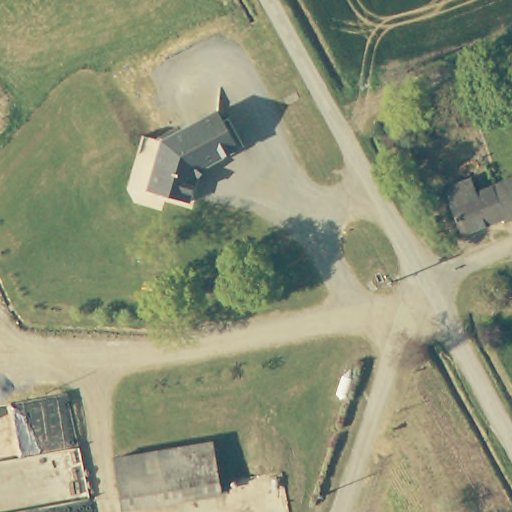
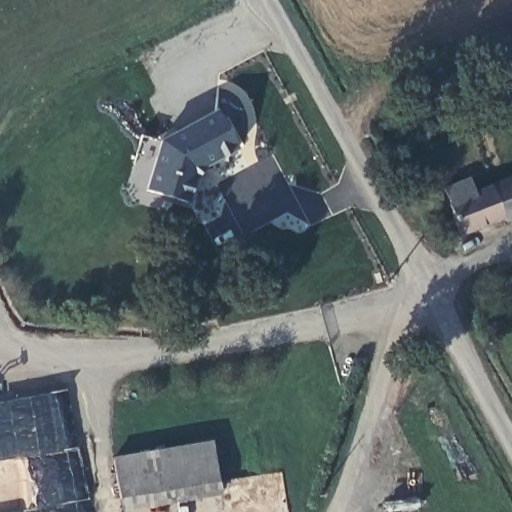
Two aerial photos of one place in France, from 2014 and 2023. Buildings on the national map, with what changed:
unchanged [(197,164),(193,164),(187,173),(189,176),(182,200),(141,188),(121,183),(136,134),(155,139),(209,109),(229,146),(197,164)]
unchanged [(462,234),(450,202),(453,202),(447,184),(471,175),(477,192),(492,186),(503,217),(462,234)]
unchanged [(505,221),(503,217),(492,186),(512,178),(512,218),(505,221)]
unchanged [(214,446),(222,486),(122,503),(115,464),(214,446)]

